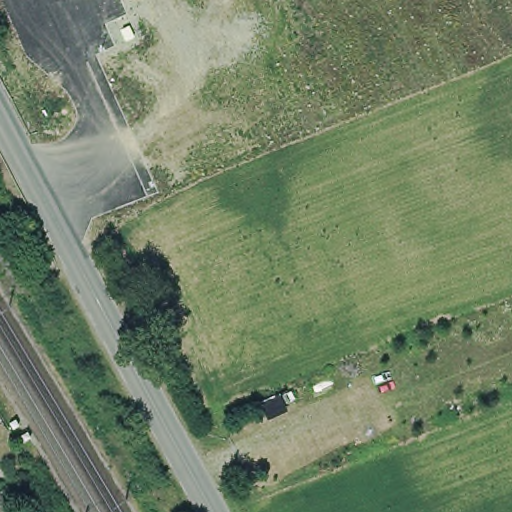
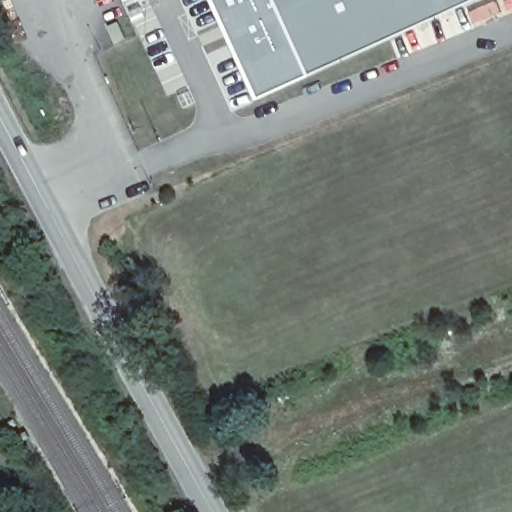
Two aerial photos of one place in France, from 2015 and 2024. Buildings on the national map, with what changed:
new [(215,0),(475,0),(259,98),(215,0)]
unchanged [(8,503),(0,506),(0,489),(2,489),(8,503)]

